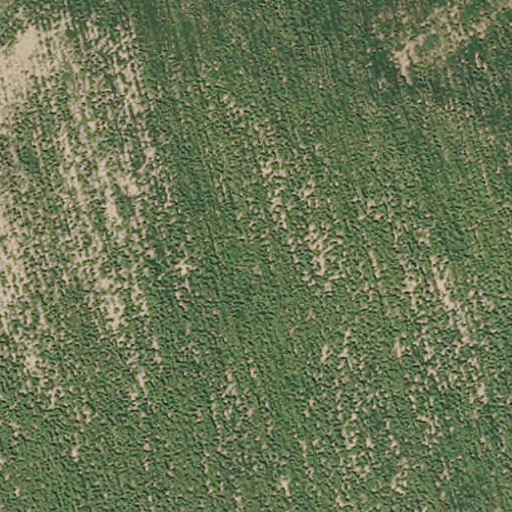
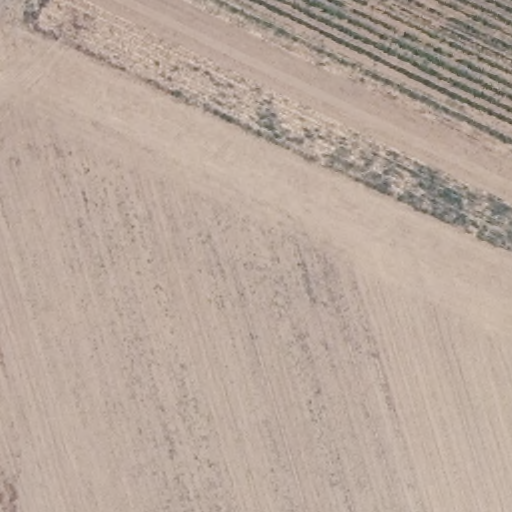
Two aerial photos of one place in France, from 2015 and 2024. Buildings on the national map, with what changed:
[]

